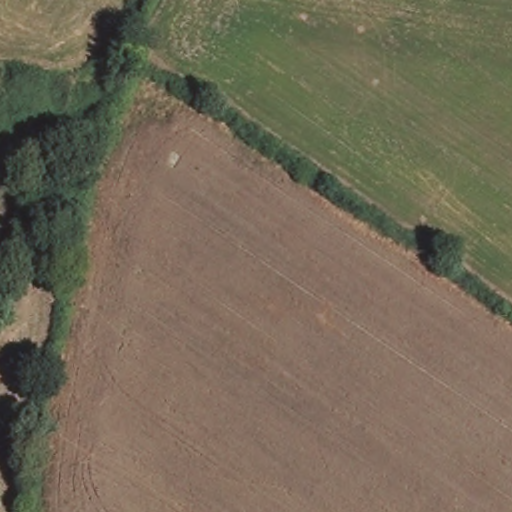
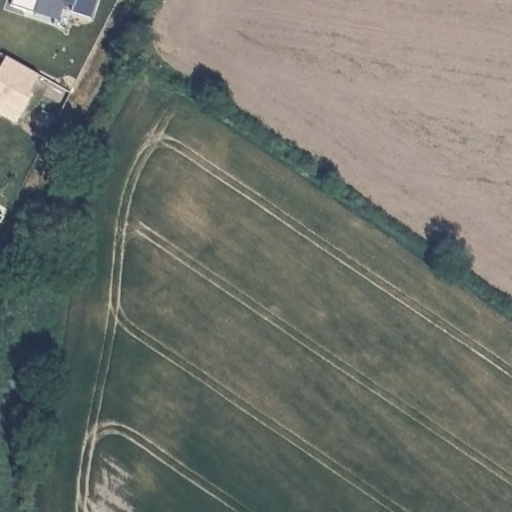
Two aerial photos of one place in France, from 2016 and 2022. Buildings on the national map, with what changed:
new [(32,11),(10,5),(12,0),(35,0),(32,11)]
new [(90,18),(71,11),(72,5),(55,0),(95,0),(90,18)]
new [(37,74),(28,90),(31,92),(16,122),(0,114),(0,65),(5,56),(37,74)]

